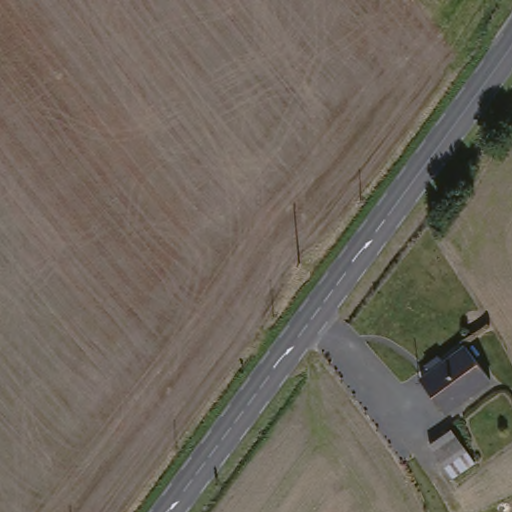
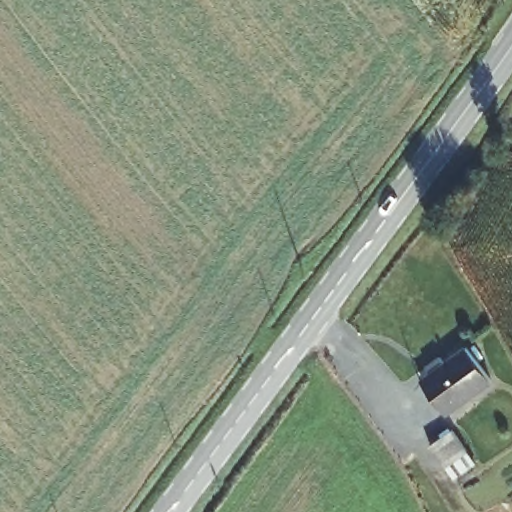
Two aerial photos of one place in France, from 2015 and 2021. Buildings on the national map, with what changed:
unchanged [(454,409),(430,376),(441,368),(436,360),(450,350),(456,358),(478,342),(501,375),(454,409)]
unchanged [(466,457),(444,471),(428,448),(450,434),(466,457)]

